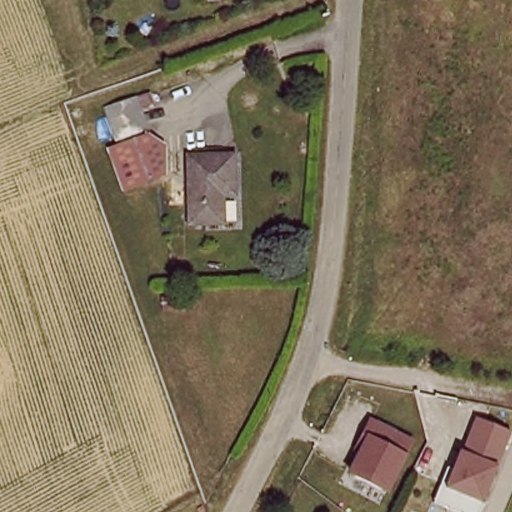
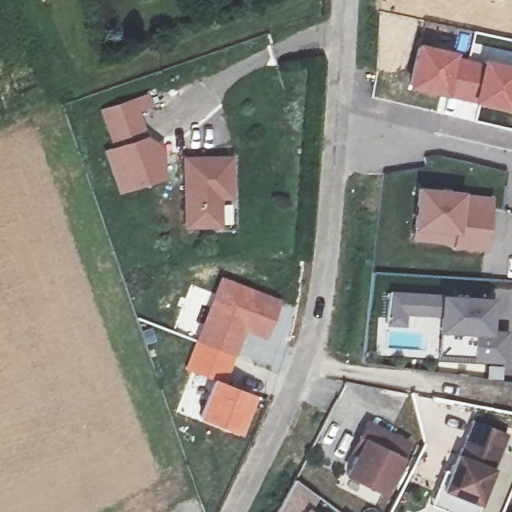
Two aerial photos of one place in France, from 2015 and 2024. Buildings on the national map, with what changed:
new [(505,4),(493,0),(506,0),(505,4)]
new [(418,43),(447,50),(468,57),(512,63),(512,106),(511,111),(407,88),(418,43)]
unchanged [(142,113),(130,118),(140,145),(157,150),(159,180),(117,196),(102,157),(112,154),(98,119),(139,102),(142,113)]
unchanged [(231,205),(220,206),(220,231),(190,231),(189,168),(231,167),(231,205)]
new [(464,192),(493,195),(488,252),(452,247),(453,242),(411,238),(412,228),(419,187),(464,192)]
new [(220,276),(278,298),(263,338),(243,331),(225,382),(212,379),(183,369),(220,276)]
new [(442,295),(496,298),(493,330),(509,330),(505,365),(474,362),(475,356),(439,354),(439,331),(440,317),(407,315),(406,327),(387,326),(390,291),(442,295)]
new [(212,379),(225,382),(255,394),(238,434),(198,419),(212,379)]
unchanged [(455,450),(457,451),(471,416),(505,429),(473,512),(459,512),(443,506),(435,503),(440,486),(455,450)]
unchanged [(363,442),(358,439),(365,424),(407,444),(382,494),(345,476),(363,442)]
new [(313,511),(315,512),(279,512),(295,479),(323,498),(313,511)]

